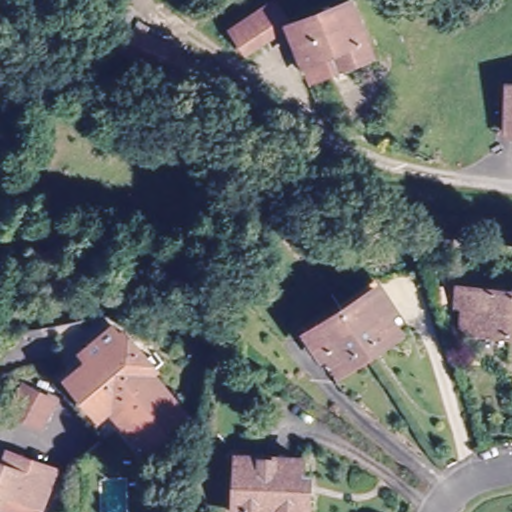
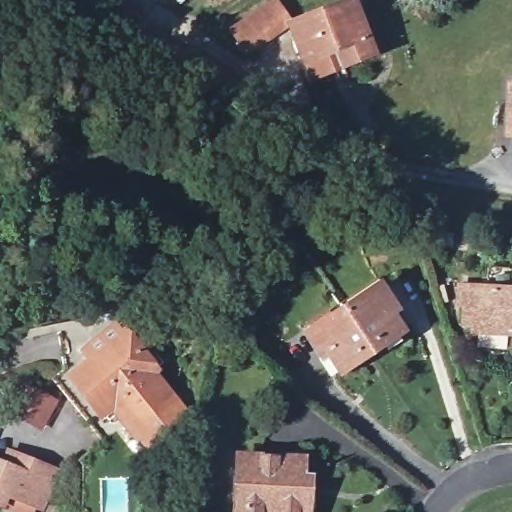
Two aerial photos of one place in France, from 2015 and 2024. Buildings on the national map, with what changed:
unchanged [(273,0),(285,0),(293,20),(242,38),(234,14),(273,0)]
unchanged [(362,0),(380,51),(312,76),(293,20),(349,0),(362,0)]
unchanged [(232,70),(218,99),(165,76),(115,55),(133,25),(232,70)]
unchanged [(338,309),(375,284),(391,308),(386,312),(399,331),(367,352),(338,309)]
unchanged [(467,303),(460,302),(462,286),(512,290),(512,331),(476,328),(477,323),(466,322),(467,303)]
unchanged [(367,352),(340,371),(327,351),(321,355),(306,331),(338,309),(367,352)]
unchanged [(115,333),(120,330),(150,367),(146,370),(183,414),(148,443),(111,399),(99,409),(69,374),(87,357),(81,350),(91,341),(110,326),(115,333)]
unchanged [(9,409),(24,384),(54,401),(40,427),(9,409)]
unchanged [(5,488),(1,499),(0,499),(0,457),(2,458),(7,446),(55,465),(40,503),(5,488)]
unchanged [(235,474),(236,454),(300,459),(299,477),(306,478),(305,495),(305,512),(233,512),(235,474)]

